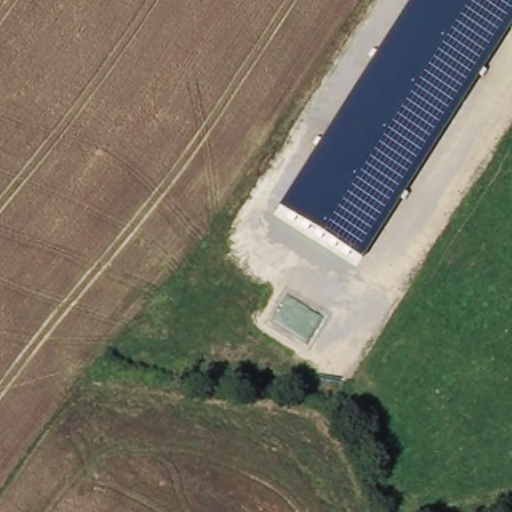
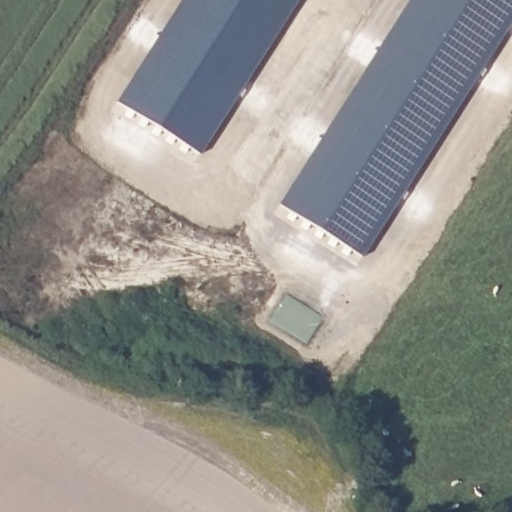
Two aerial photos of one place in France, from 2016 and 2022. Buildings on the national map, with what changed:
new [(117,101),(182,0),(299,0),(201,154),(117,101)]
unchanged [(410,0),(512,0),(512,24),(363,256),(281,202),(410,0)]

